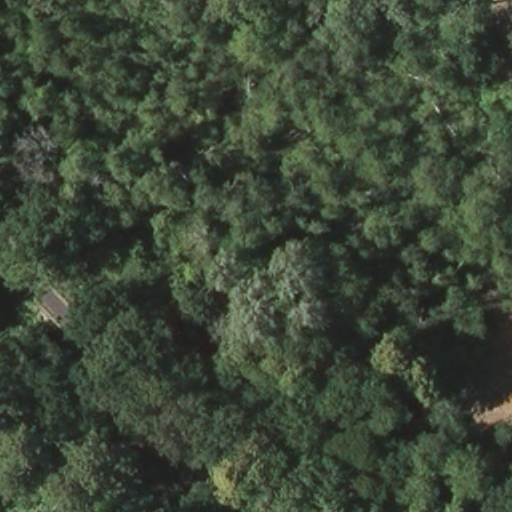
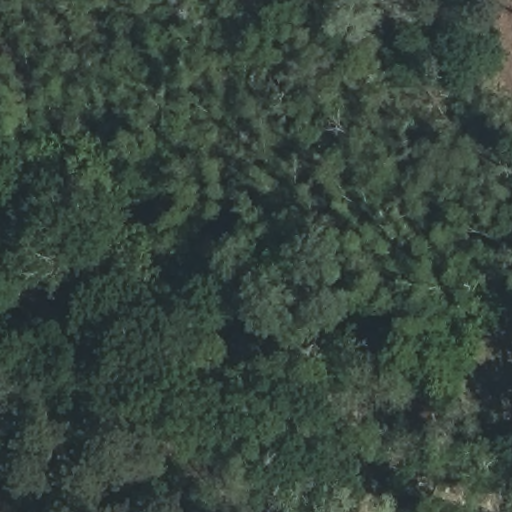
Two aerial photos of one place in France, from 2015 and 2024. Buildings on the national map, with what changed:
[]

